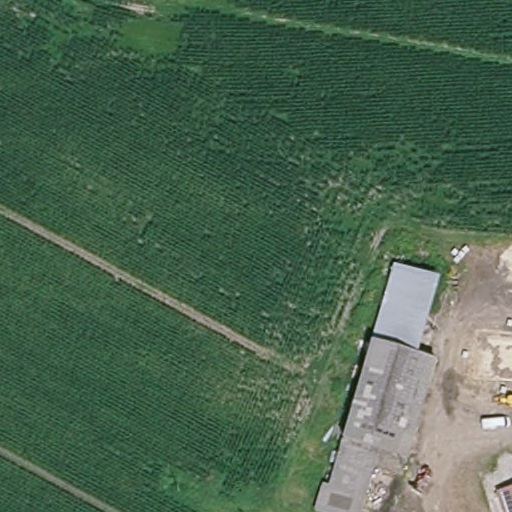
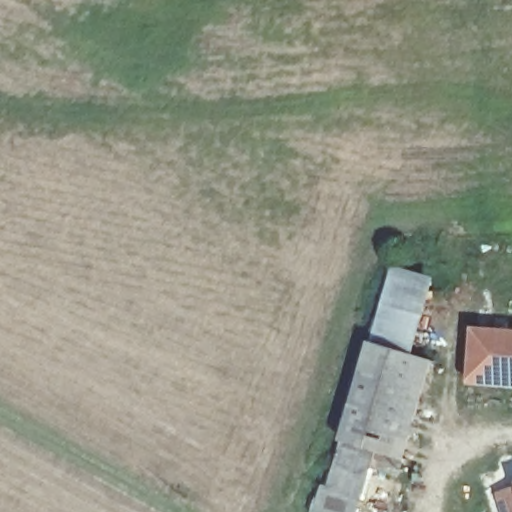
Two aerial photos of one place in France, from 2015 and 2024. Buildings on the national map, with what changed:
unchanged [(393,270),(432,282),(410,352),(371,339),(393,270)]
new [(512,389),(469,386),(473,328),(512,331),(512,389)]
demolished [(512,349),(512,401),(456,386),(471,338),(512,349)]
unchanged [(371,339),(410,352),(432,361),(401,463),(373,455),(379,434),(345,422),(371,339)]
unchanged [(379,434),(373,455),(366,481),(331,469),(345,422),(379,434)]
unchanged [(331,469),(366,481),(356,512),(309,512),(307,511),(314,486),(325,490),(331,469)]
unchanged [(512,490),(512,512),(503,512),(497,495),(512,490)]

